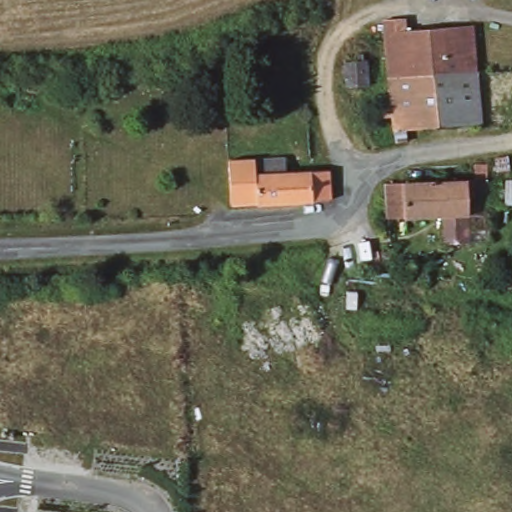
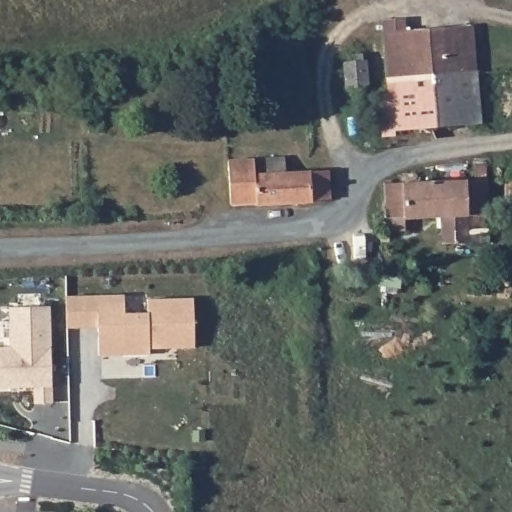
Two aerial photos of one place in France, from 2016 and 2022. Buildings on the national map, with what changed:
unchanged [(481,73),(394,78),(389,32),(462,27),(461,28),(464,27),(478,26),(481,73)]
unchanged [(368,86),(347,88),(345,62),(366,60),(368,86)]
unchanged [(481,73),(486,122),(399,131),(397,117),(387,118),(384,96),(395,95),(394,78),(481,73)]
unchanged [(331,199),(312,200),(312,202),(257,205),(257,204),(255,159),(286,158),(286,173),(329,170),(331,199)]
unchanged [(257,204),(231,205),(228,161),(255,159),(257,204)]
unchanged [(488,230),(468,231),(468,243),(442,244),(441,216),(387,219),(384,183),(487,180),(488,230)]
new [(127,314),(150,314),(150,300),(196,299),(197,349),(152,349),(152,355),(101,357),(100,328),(69,329),(68,297),(100,297),(126,296),(127,314)]
new [(54,404),(33,405),(33,389),(0,390),(0,347),(11,346),(10,306),(50,306),(54,404)]

